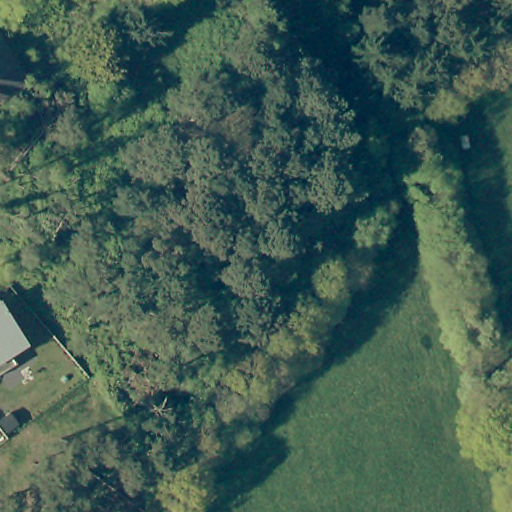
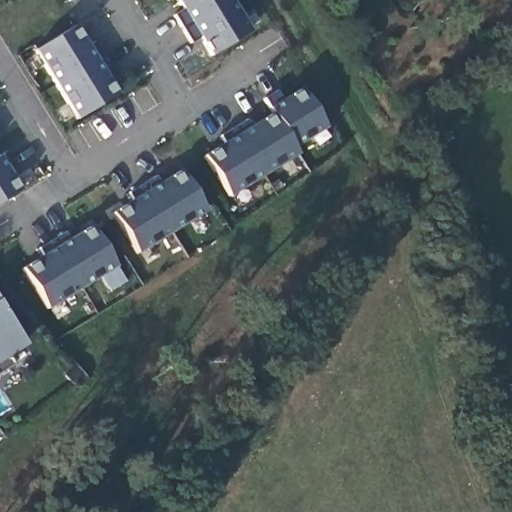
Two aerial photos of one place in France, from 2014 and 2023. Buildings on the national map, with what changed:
new [(250,32),(212,56),(200,37),(192,42),(175,14),(184,9),(178,0),(231,0),(250,32)]
new [(77,25),(91,46),(97,42),(112,69),(106,73),(120,93),(79,119),(37,50),(77,25)]
demolished [(0,99),(0,43),(25,83),(0,99)]
new [(248,120),(251,126),(274,113),(271,107),(266,99),(278,92),(284,101),(303,90),(327,127),(295,149),(298,154),(231,195),(206,155),(225,141),(221,136),(248,120)]
new [(7,152),(14,165),(9,168),(22,189),(0,203),(0,156),(1,155),(7,152)]
new [(156,177),(159,184),(182,172),(205,211),(139,252),(114,212),(133,199),(130,192),(156,177)]
new [(67,232),(70,239),(92,226),(117,267),(50,308),(23,267),(44,253),(41,248),(67,232)]
unchanged [(9,352),(16,362),(0,372),(0,299),(26,342),(9,352)]

